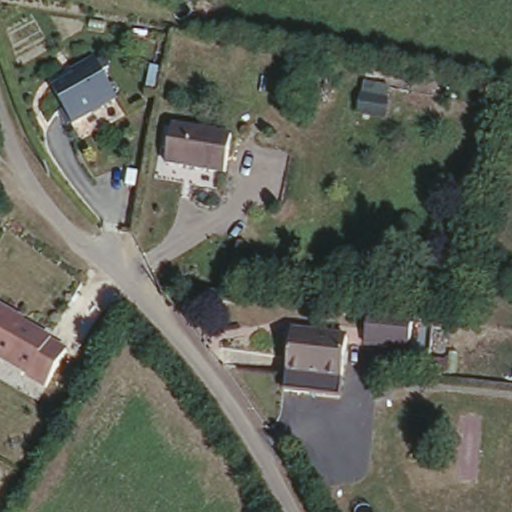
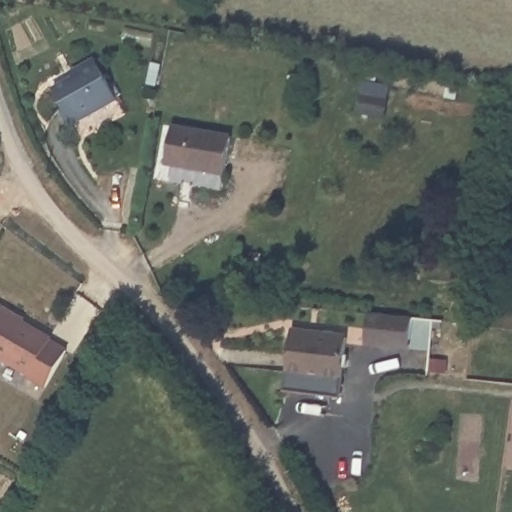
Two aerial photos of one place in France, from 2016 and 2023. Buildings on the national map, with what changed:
unchanged [(56,88),(76,75),(71,68),(94,54),(119,94),(77,121),(56,88)]
unchanged [(353,125),(358,80),(393,85),(386,130),(353,125)]
unchanged [(174,122),(233,134),(227,168),(168,158),(174,122)]
unchanged [(16,321),(54,342),(53,344),(70,354),(49,389),(32,380),(33,378),(0,359),(0,310),(1,308),(18,318),(16,321)]
unchanged [(409,342),(390,340),(389,349),(366,347),(369,316),(411,320),(409,342)]
unchanged [(293,322),(346,330),(340,369),(287,363),(293,322)]

